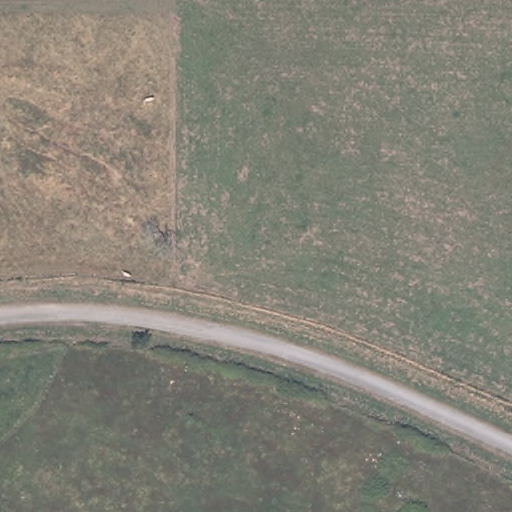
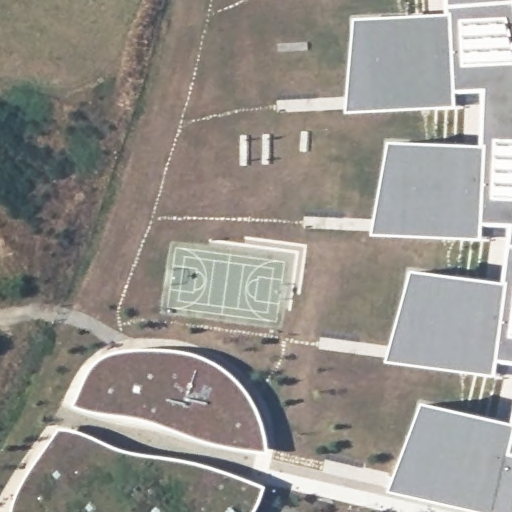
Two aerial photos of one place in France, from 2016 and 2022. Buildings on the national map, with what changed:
new [(494,377),(383,361),(409,268),(500,282),(506,237),(480,236),(479,240),(368,235),(386,140),(480,145),(481,102),(454,104),(454,109),(343,111),(352,17),(445,12),(444,0),(512,0),(512,376),(494,375),(494,377)]
new [(85,373),(94,360),(109,352),(132,348),(164,350),(191,353),(207,358),(226,372),(246,392),(260,420),(268,454),(224,448),(200,443),(170,431),(142,421),(116,417),(89,413),(70,406),(85,373)]
new [(510,422),(512,413),(512,512),(482,512),(386,491),(419,401),(510,422)]
new [(88,435),(108,446),(126,452),(161,458),(189,463),(221,470),(263,488),(255,507),(251,512),(10,512),(10,507),(21,482),(37,458),(58,430),(88,435)]

